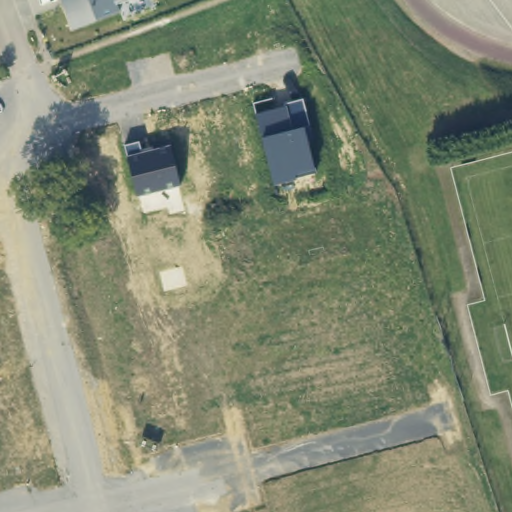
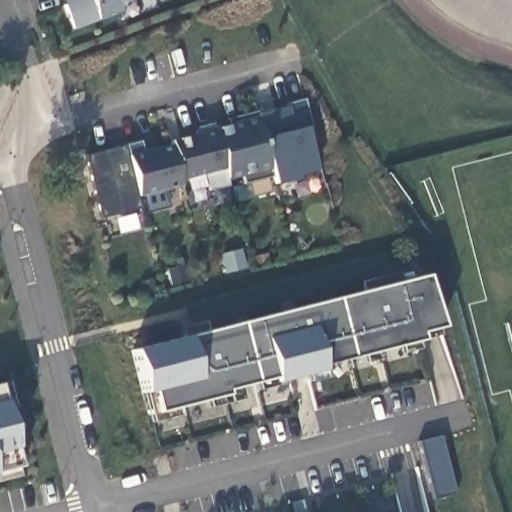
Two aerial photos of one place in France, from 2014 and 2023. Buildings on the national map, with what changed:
unchanged [(59,0),(126,0),(116,3),(120,14),(93,23),(72,31),(57,0),(59,0)]
unchanged [(260,138),(254,114),(301,102),(312,140),(306,142),(316,174),(274,185),(260,138)]
unchanged [(186,141),(189,131),(254,114),(260,138),(272,178),(244,185),(242,177),(227,181),(228,187),(209,191),(206,175),(177,182),(169,147),(186,141)]
unchanged [(123,148),(140,143),(142,154),(169,147),(179,187),(137,197),(123,148)]
unchanged [(137,197),(140,209),(100,218),(85,156),(123,148),(137,197)]
new [(185,336),(423,277),(440,328),(417,333),(419,342),(331,363),(333,375),(307,382),(305,374),(272,384),(272,379),(237,388),(239,400),(207,408),(205,400),(174,408),(175,416),(151,422),(142,393),(130,351),(185,336)]
new [(16,471),(0,475),(0,409),(16,471)]
new [(441,438),(456,496),(434,500),(418,443),(441,438)]

